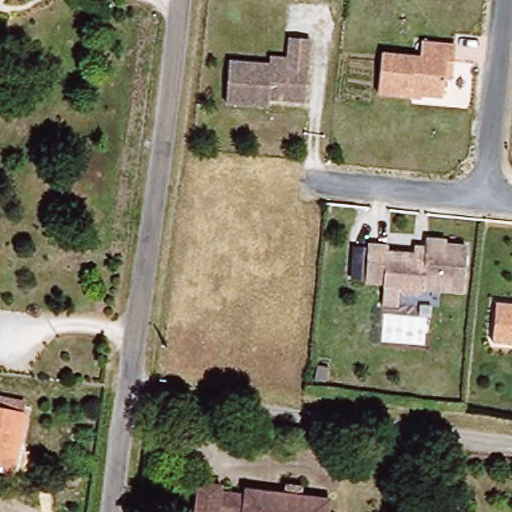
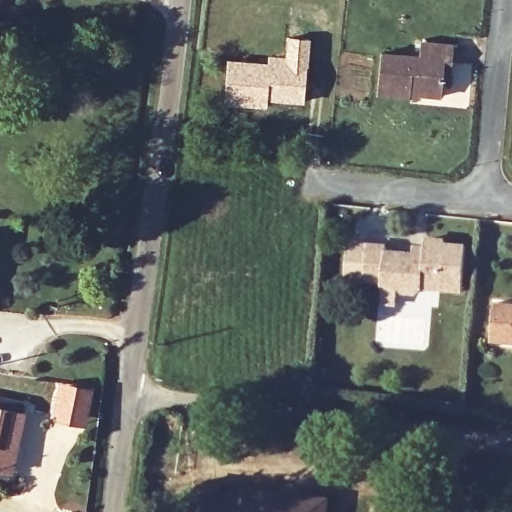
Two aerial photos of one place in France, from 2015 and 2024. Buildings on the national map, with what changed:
unchanged [(314,41),(307,105),(262,101),(261,107),(242,106),(243,90),(230,90),(232,64),(275,67),(276,60),(291,62),(294,39),(314,41)]
unchanged [(410,96),(410,98),(378,95),(382,56),(420,60),(422,44),(455,48),(453,64),(451,79),(444,79),(440,100),(410,96)]
unchanged [(380,293),(382,275),(364,270),(367,236),(386,239),(386,244),(417,247),(425,241),(427,232),(444,235),(444,239),(466,242),(460,283),(438,282),(437,298),(380,293)]
unchanged [(490,341),(493,301),(512,303),(512,343),(490,341)]
new [(55,380),(94,388),(85,426),(47,418),(55,380)]
unchanged [(0,472),(0,402),(21,406),(19,415),(23,417),(10,475),(0,472)]
unchanged [(197,487),(220,488),(219,496),(242,500),(243,492),(328,502),(327,512),(194,512),(197,487)]

